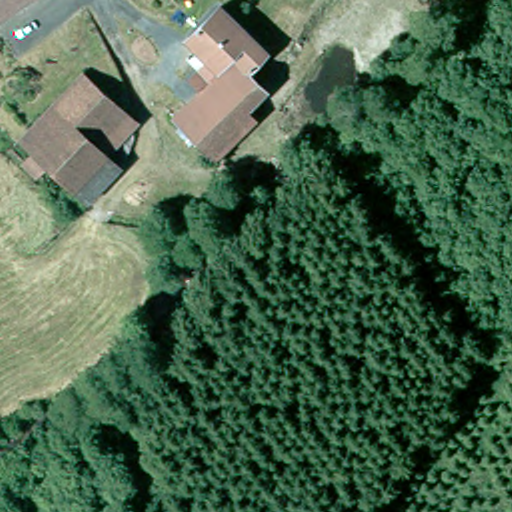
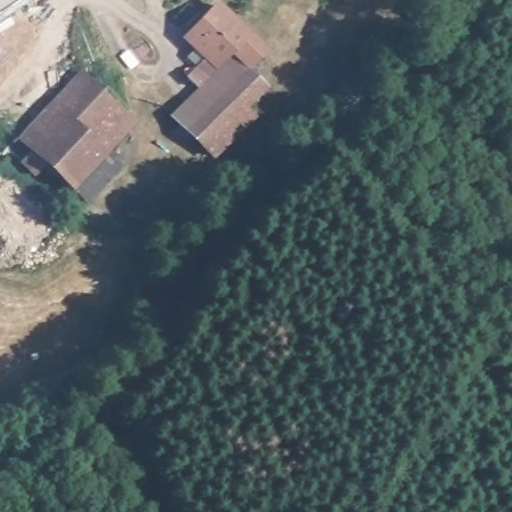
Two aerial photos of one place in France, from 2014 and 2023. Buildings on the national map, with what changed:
unchanged [(0,0),(18,0),(0,12),(0,0)]
unchanged [(214,60),(193,37),(226,5),(272,50),(254,69),(239,85),(214,60)]
unchanged [(254,69),(268,83),(238,115),(246,124),(228,142),(219,135),(207,145),(178,115),(216,75),(208,65),(214,60),(239,85),(254,69)]
unchanged [(138,118),(109,148),(122,161),(87,197),(29,142),(95,76),(138,118)]
unchanged [(163,211),(162,225),(151,225),(152,210),(163,211)]

